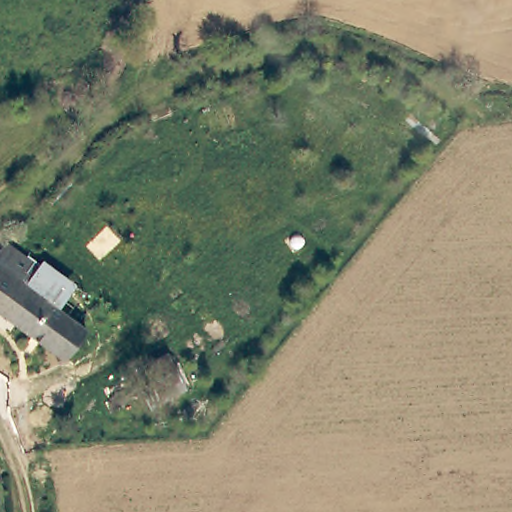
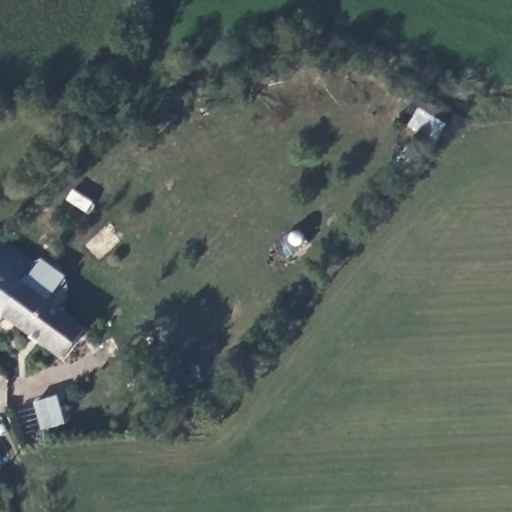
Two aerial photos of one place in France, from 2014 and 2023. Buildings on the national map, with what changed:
unchanged [(36,266),(25,282),(29,286),(85,331),(63,359),(43,346),(0,313),(0,249),(5,241),(36,266)]
unchanged [(42,259),(103,308),(97,315),(85,331),(29,286),(25,282),(36,266),(42,259)]

